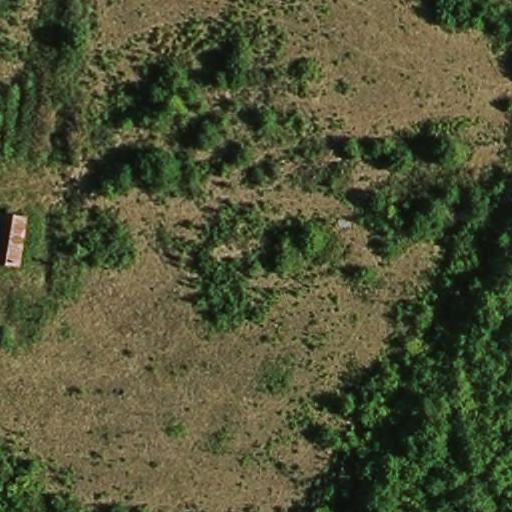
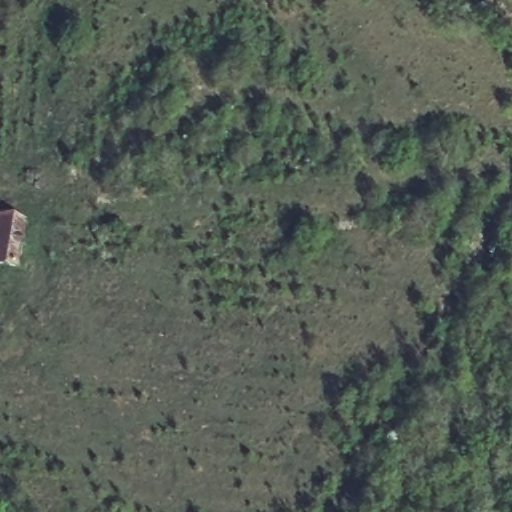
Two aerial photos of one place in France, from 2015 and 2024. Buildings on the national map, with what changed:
unchanged [(22,217),(17,264),(0,262),(0,213),(22,217)]

